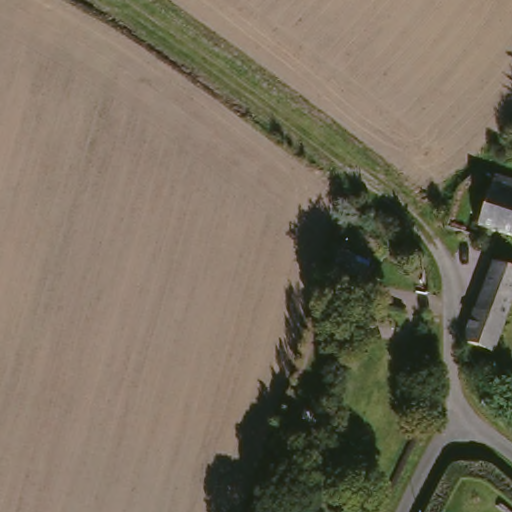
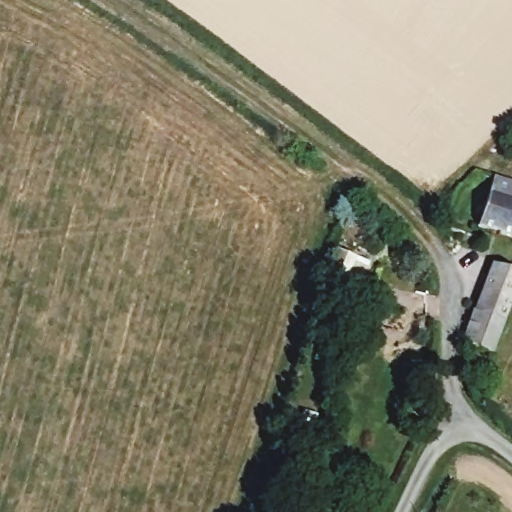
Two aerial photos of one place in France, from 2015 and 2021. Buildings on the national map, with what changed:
unchanged [(473,229),(480,209),(490,176),(512,182),(512,241),(473,229)]
unchanged [(459,234),(444,230),(446,222),(452,200),(467,204),(459,234)]
unchanged [(369,266),(353,304),(321,293),(332,251),(369,266)]
unchanged [(499,327),(465,316),(482,268),(512,279),(512,289),(499,327)]
unchanged [(485,358),(456,348),(465,316),(499,327),(485,358)]

